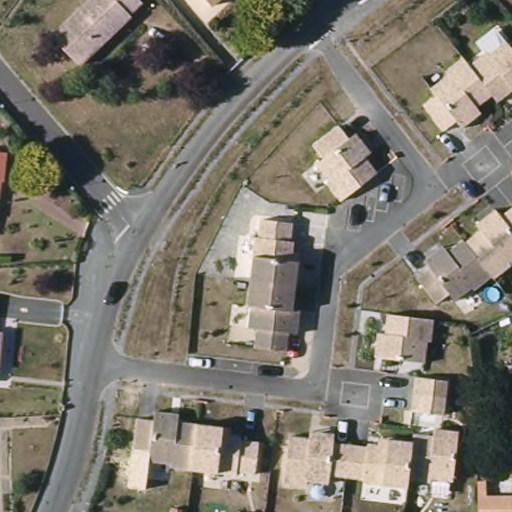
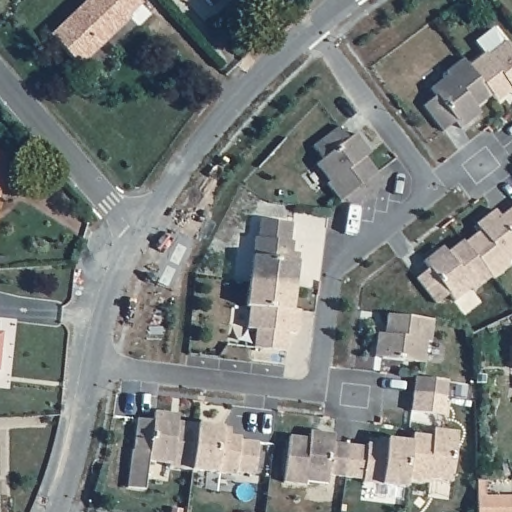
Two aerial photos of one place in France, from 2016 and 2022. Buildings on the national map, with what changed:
unchanged [(129,15),(130,17),(79,66),(51,36),(89,0),(139,0),(141,3),(129,15)]
unchanged [(216,6),(210,0),(222,0),(216,6)]
unchanged [(491,96),(468,66),(486,53),(488,56),(505,42),(512,50),(512,91),(497,103),(491,96)]
unchanged [(474,118),(461,129),(456,122),(443,131),(423,106),(436,96),(430,89),(447,76),(445,73),(463,59),(468,66),(491,96),(476,108),(480,114),(474,118)]
unchanged [(355,134),(366,147),(370,153),(364,158),(376,173),(364,183),(340,202),(326,184),(329,182),(316,165),(323,159),(313,147),(338,127),(348,140),(355,134)]
unchanged [(12,167),(9,194),(5,194),(3,211),(0,210),(0,165),(12,167)]
unchanged [(486,227),(482,221),(495,210),(500,217),(512,208),(512,260),(508,263),(511,266),(493,280),(491,277),(465,243),(480,231),(486,227)]
unchanged [(298,262),(295,287),(250,282),(255,238),(258,238),(260,220),(292,224),(290,242),(293,243),(292,253),(299,254),(298,262)]
unchanged [(465,243),(491,277),(473,291),(471,288),(454,301),(449,294),(436,304),(416,279),(429,269),(424,262),(437,252),(441,258),(448,252),(463,241),(465,243)]
unchanged [(300,311),(299,319),(297,335),(288,333),(286,352),(254,348),(256,330),(247,328),(250,307),(247,307),(250,282),(295,287),(292,310),(300,311)]
unchanged [(375,350),(377,334),(385,335),(387,315),(433,320),(430,343),(426,342),(424,364),(382,358),(374,358),(375,350)]
unchanged [(3,368),(0,367),(0,333),(7,334),(3,368)]
unchanged [(411,412),(413,395),(415,378),(447,382),(445,399),(443,416),(411,412)]
unchanged [(170,464),(148,462),(149,453),(133,451),(137,419),(153,421),(154,412),(171,414),(178,415),(177,423),(197,425),(191,471),(169,468),(170,464)]
unchanged [(222,428),(221,435),(230,436),(240,438),(240,441),(258,443),(254,475),(236,473),(235,476),(191,471),(197,425),(222,428)]
unchanged [(433,437),(440,438),(441,430),(457,432),(451,482),(430,479),(430,483),(407,480),(412,443),(413,435),(433,437)]
unchanged [(310,432),(317,433),(334,435),(333,444),(348,445),(344,477),(329,475),(328,484),(306,482),(306,485),(283,482),(289,437),(309,439),(310,432)]
unchanged [(367,448),(367,445),(378,446),(378,439),(387,440),(412,443),(407,480),(406,488),(362,483),(363,480),(344,477),(348,445),(367,448)]
unchanged [(512,496),(512,512),(477,512),(477,497),(512,496)]

